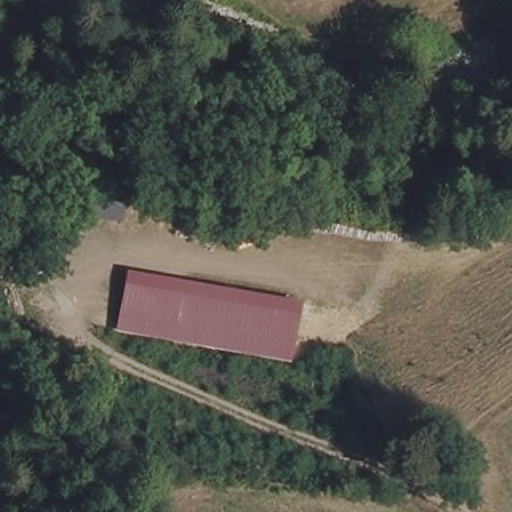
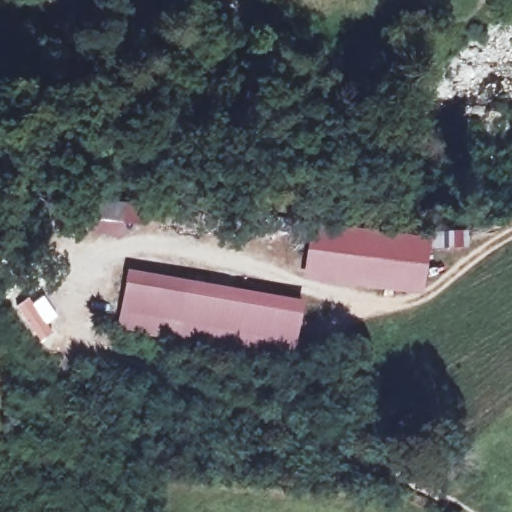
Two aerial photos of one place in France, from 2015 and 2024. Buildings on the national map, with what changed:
new [(309,222),(430,236),(422,295),(304,280),(309,222)]
unchanged [(303,301),(292,361),(117,332),(128,270),(303,301)]

